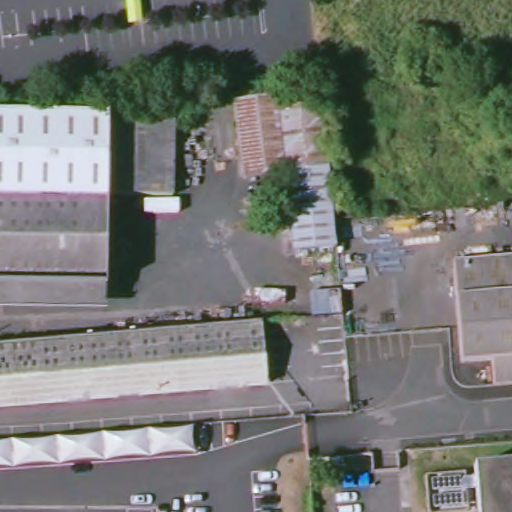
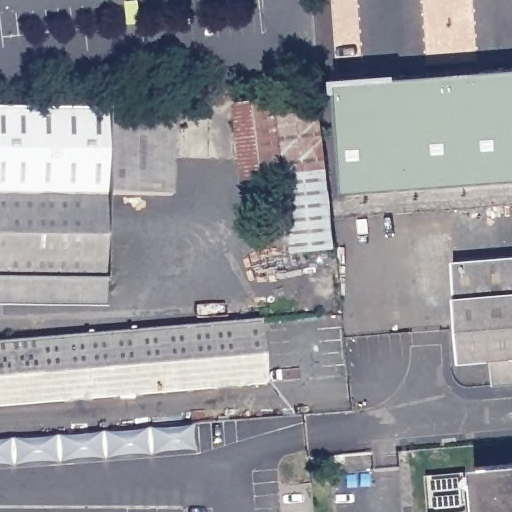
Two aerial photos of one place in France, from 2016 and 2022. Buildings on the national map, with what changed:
new [(336,90),(512,75),(512,181),(343,195),(336,90)]
unchanged [(292,254),(282,175),(242,180),(232,101),(315,92),(325,171),(323,171),(332,250),(292,254)]
unchanged [(172,112),(172,193),(105,192),(103,283),(0,282),(0,111),(172,112)]
unchanged [(490,360),(460,362),(451,261),(512,256),(512,384),(492,386),(490,360)]
unchanged [(103,283),(102,307),(0,306),(0,282),(103,283)]
unchanged [(265,387),(0,408),(0,346),(257,325),(265,387)]
unchanged [(195,427),(198,454),(0,467),(0,440),(195,427)]
unchanged [(512,460),(512,512),(475,512),(470,463),(512,460)]

